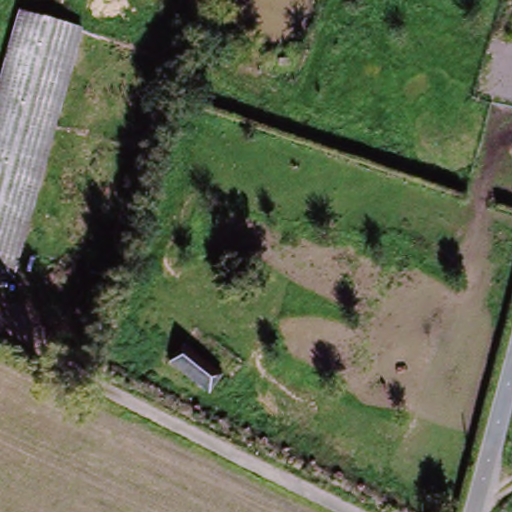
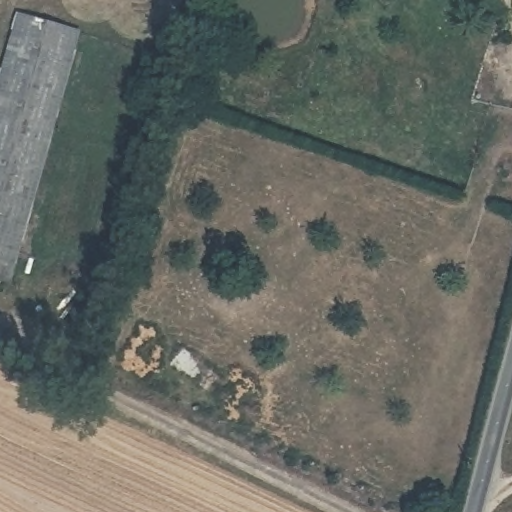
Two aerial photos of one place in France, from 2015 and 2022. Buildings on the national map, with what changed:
unchanged [(74,32),(9,281),(0,279),(0,71),(15,16),(74,32)]
unchanged [(208,379),(182,357),(172,350),(185,334),(194,341),(220,363),(208,379)]

